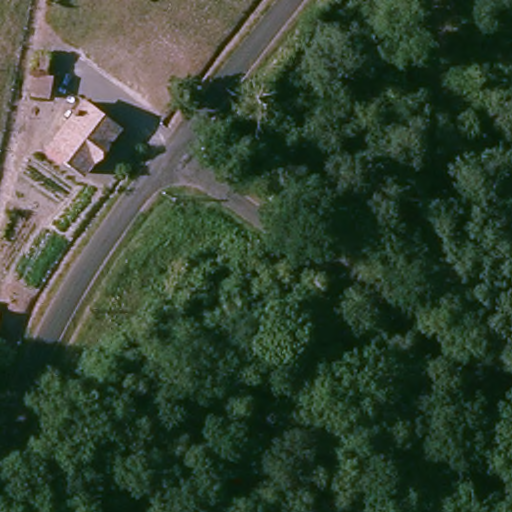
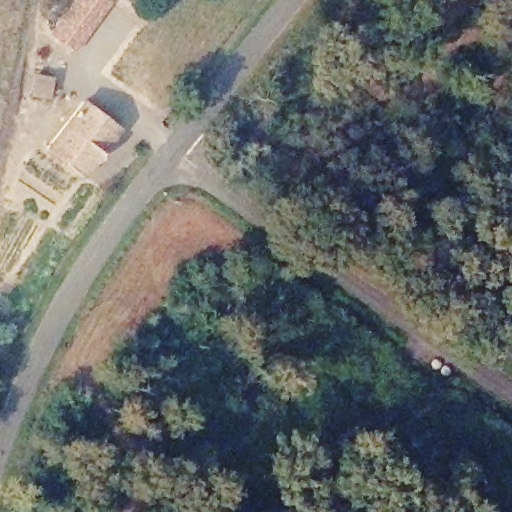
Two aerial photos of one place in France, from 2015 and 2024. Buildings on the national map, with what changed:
new [(111,0),(113,1),(75,52),(50,34),(75,0),(111,0)]
unchanged [(116,120),(86,173),(49,150),(77,99),(116,120)]
unchanged [(2,318),(0,323),(0,317),(2,318)]

